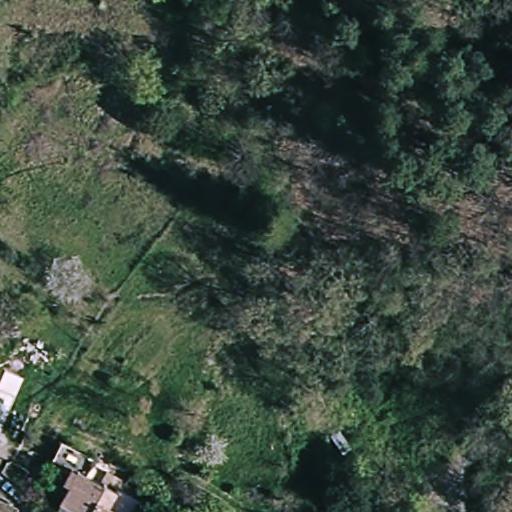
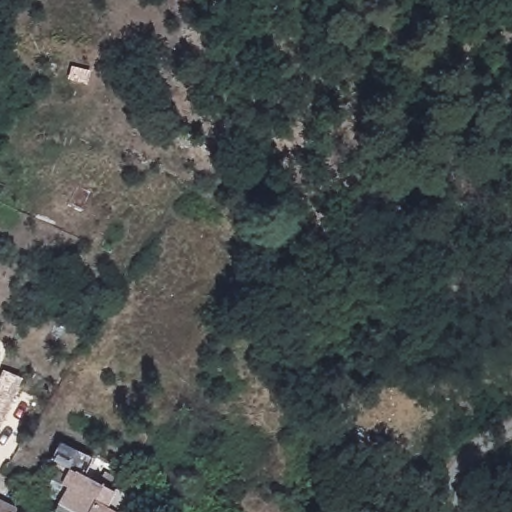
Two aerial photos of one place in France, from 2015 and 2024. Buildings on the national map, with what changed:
unchanged [(34,375),(26,394),(12,428),(0,423),(0,403),(8,386),(15,367),(34,375)]
unchanged [(73,474),(57,465),(65,451),(89,464),(82,478),(101,490),(108,494),(103,503),(120,512),(51,512),(73,474)]
unchanged [(0,497),(21,508),(19,512),(0,512),(0,497)]

